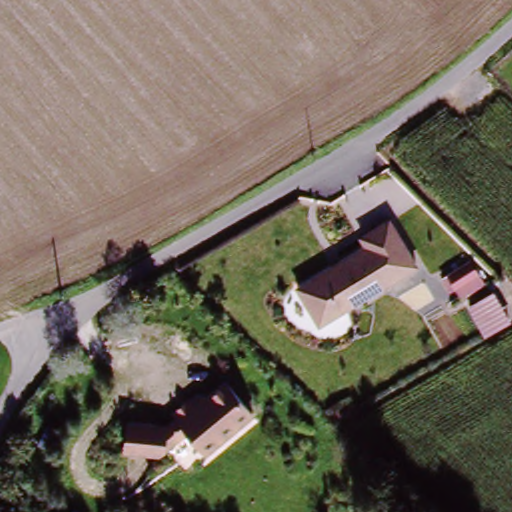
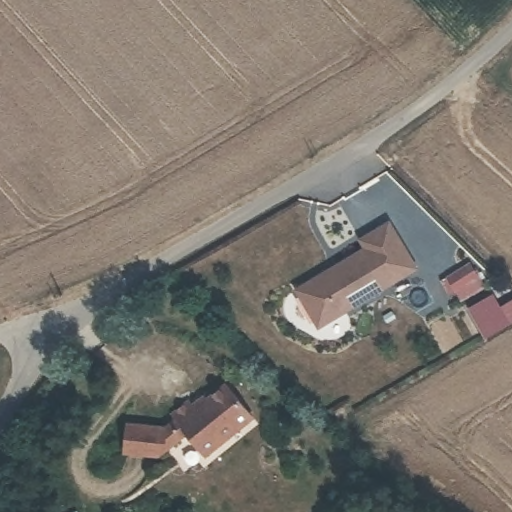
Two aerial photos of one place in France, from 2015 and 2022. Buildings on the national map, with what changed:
unchanged [(419,270),(322,329),(299,291),(370,250),(365,241),(391,225),(419,270)]
unchanged [(471,281),(443,297),(435,283),(464,267),(471,281)]
unchanged [(252,420),(205,458),(186,433),(157,456),(122,450),(126,423),(170,432),(178,422),(172,415),(188,402),(195,410),(225,387),(252,420)]

